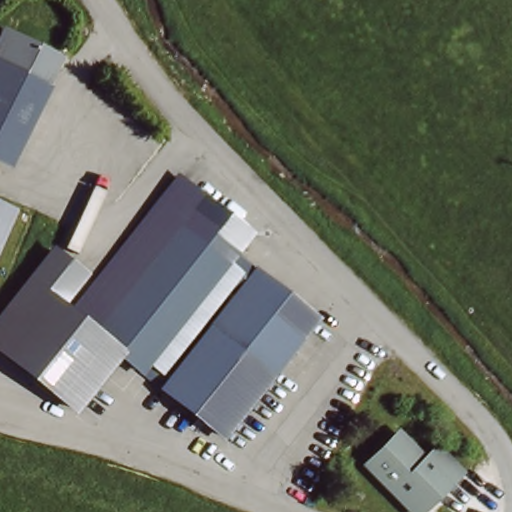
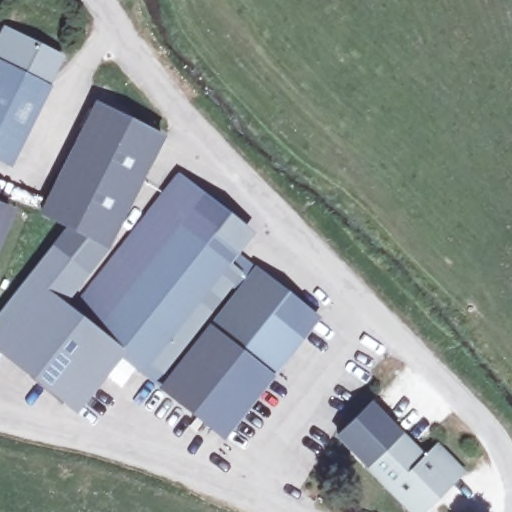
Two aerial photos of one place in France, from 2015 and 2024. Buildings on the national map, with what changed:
unchanged [(0,160),(0,52),(10,34),(63,60),(11,165),(0,160)]
new [(51,248),(65,227),(39,215),(95,101),(165,136),(109,249),(82,273),(51,248)]
unchanged [(155,349),(157,350),(148,361),(141,371),(118,352),(75,407),(0,348),(0,313),(51,248),(82,273),(58,303),(69,312),(117,252),(177,175),(189,184),(218,208),(202,227),(235,253),(233,255),(219,274),(216,271),(202,289),(155,349)]
unchanged [(0,223),(0,200),(8,204),(0,223)]
unchanged [(314,316),(221,434),(141,371),(148,361),(157,350),(178,367),(239,290),(219,274),(233,255),(235,253),(314,316)]
unchanged [(434,501),(430,497),(416,511),(369,463),(401,431),(428,458),(440,446),(465,471),(434,501)]

